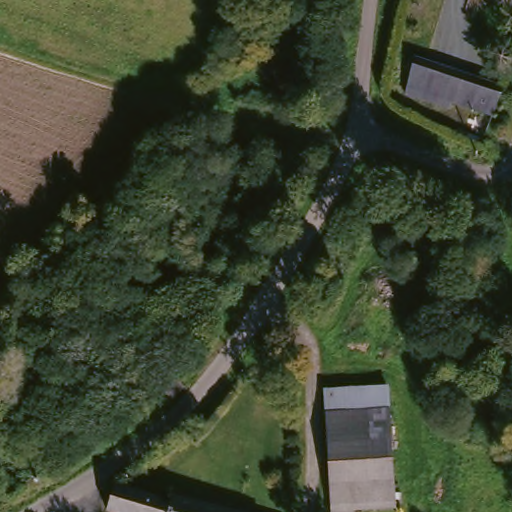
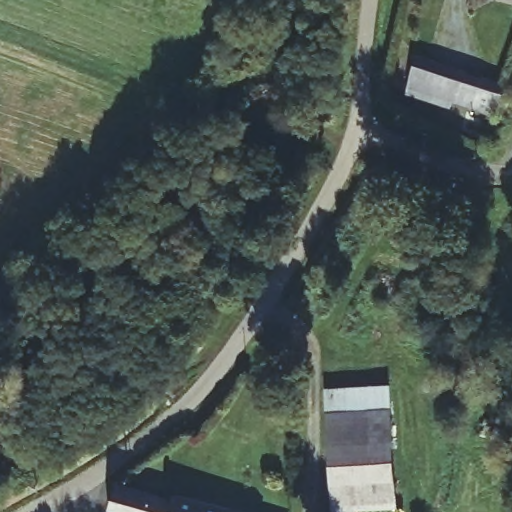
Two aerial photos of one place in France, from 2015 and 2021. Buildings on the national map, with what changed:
unchanged [(455,114),(409,103),(419,63),(507,84),(499,116),(458,104),(455,114)]
unchanged [(381,382),(389,503),(354,505),(354,512),(330,512),(330,507),(323,386),(381,382)]
unchanged [(120,484),(169,499),(173,488),(253,512),(125,512),(113,508),(120,484)]

